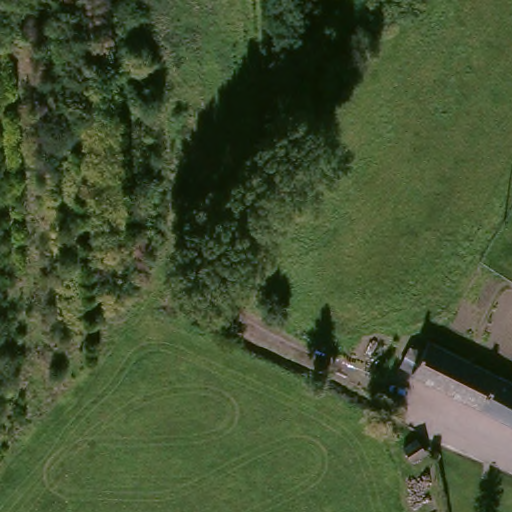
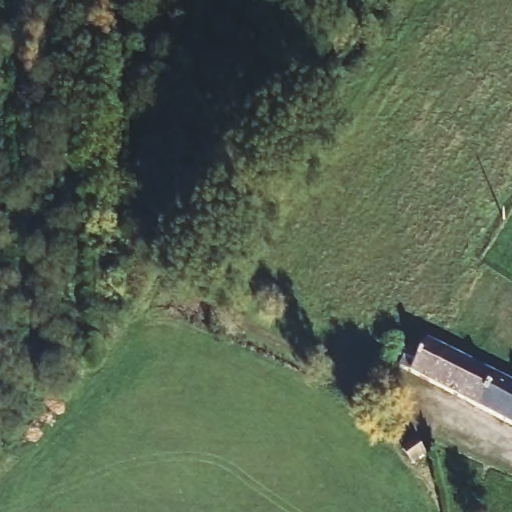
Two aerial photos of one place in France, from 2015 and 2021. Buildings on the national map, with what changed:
unchanged [(411,347),(422,354),(433,339),(512,382),(512,426),(401,364),(411,347)]
unchanged [(425,454),(423,455),(413,462),(405,449),(417,441),(425,454)]

